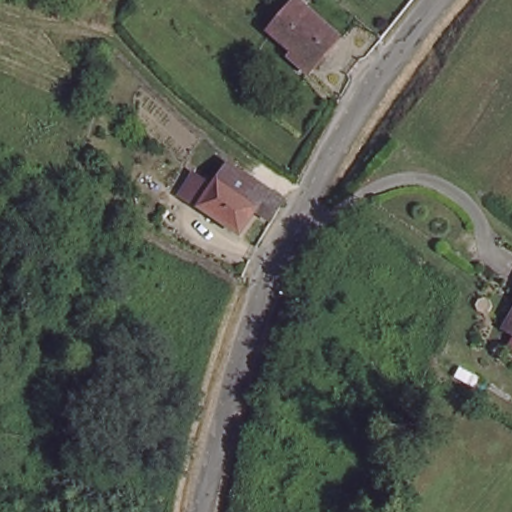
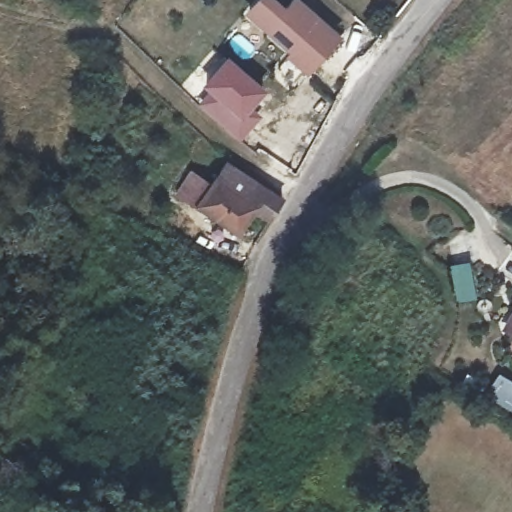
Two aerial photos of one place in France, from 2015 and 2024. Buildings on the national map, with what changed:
unchanged [(315,68),(299,56),(302,51),(270,29),(289,0),(297,0),(340,31),(315,68)]
new [(209,91),(203,86),(228,54),(266,88),(252,105),(260,111),(238,139),(198,105),(209,91)]
unchanged [(270,215),(256,207),(241,232),(201,207),(198,209),(178,197),(194,171),(214,184),(229,158),(283,190),(270,215)]
unchanged [(508,331),(512,323),(512,334),(508,331)]

